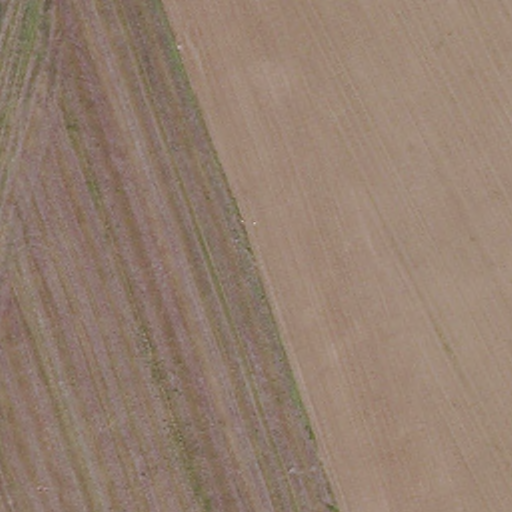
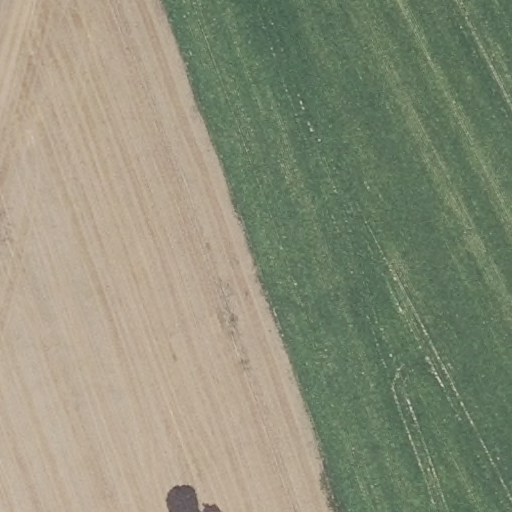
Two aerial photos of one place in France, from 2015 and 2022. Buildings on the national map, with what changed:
[]

